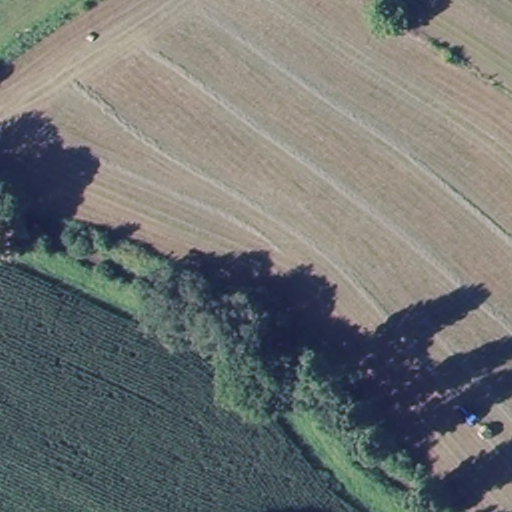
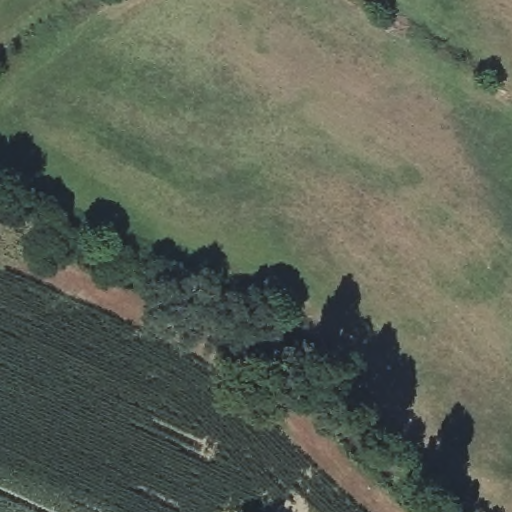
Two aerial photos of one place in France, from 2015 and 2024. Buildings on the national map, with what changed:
[]

